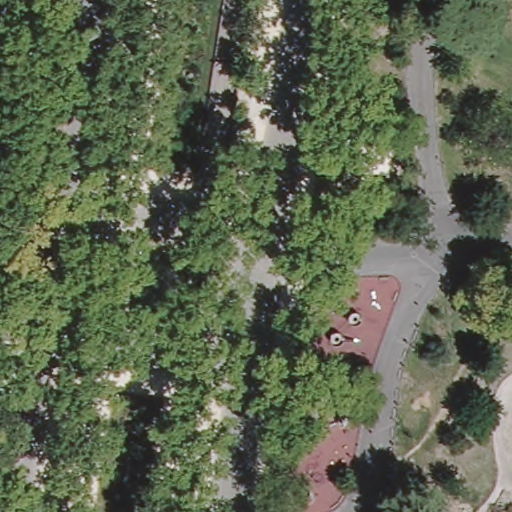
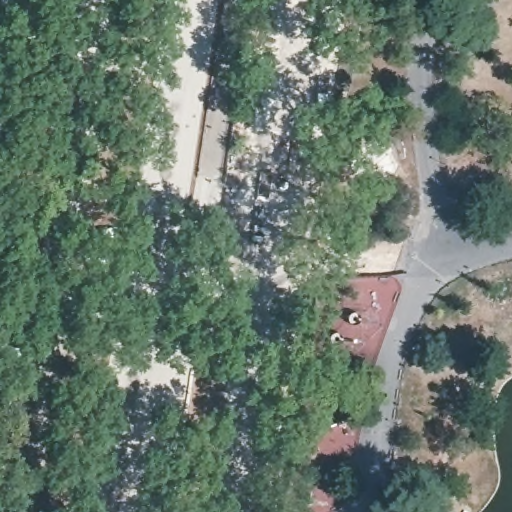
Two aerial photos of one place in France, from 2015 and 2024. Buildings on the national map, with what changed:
[]

